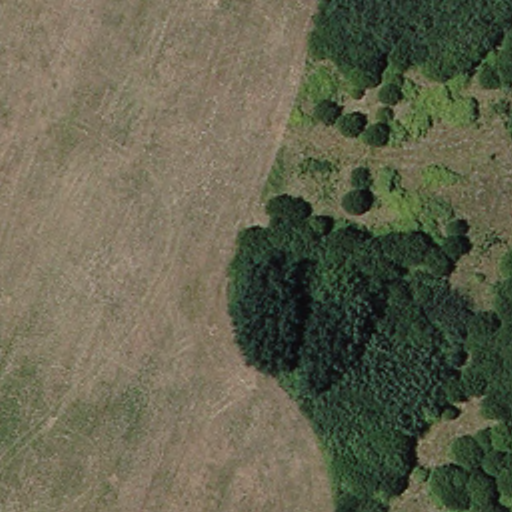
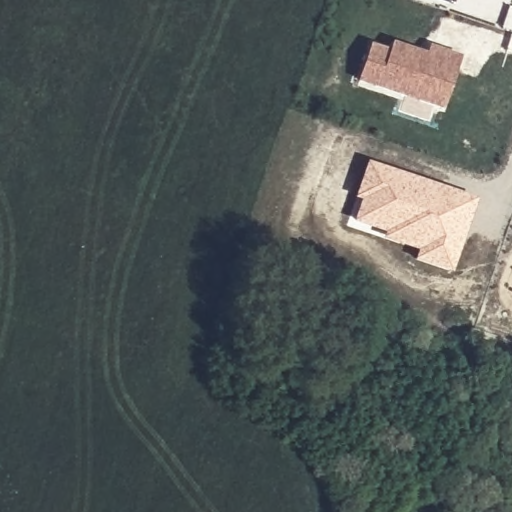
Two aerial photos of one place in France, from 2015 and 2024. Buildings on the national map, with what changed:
new [(389,49),(392,41),(427,52),(430,45),(461,56),(442,111),(358,82),(371,42),(389,49)]
new [(413,261),(417,250),(351,227),(361,200),(355,198),(367,162),(478,199),(453,273),(413,261)]

